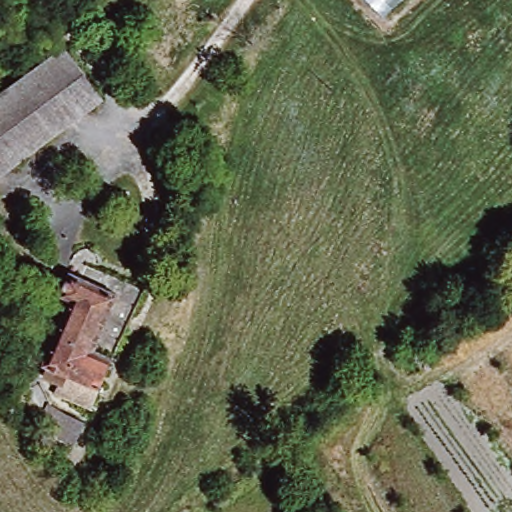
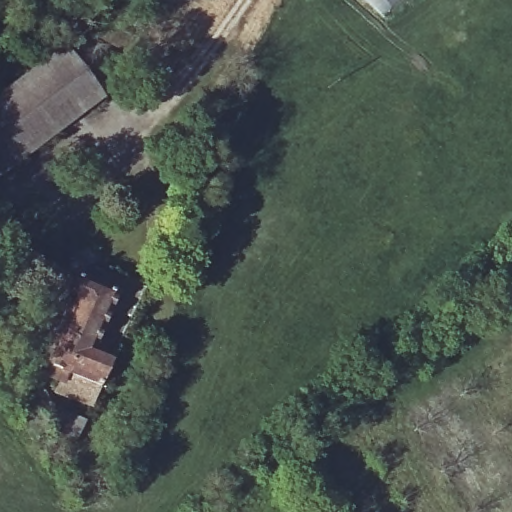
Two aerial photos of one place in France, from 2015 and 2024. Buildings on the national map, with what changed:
unchanged [(70,48),(110,97),(0,187),(0,104),(70,48)]
unchanged [(60,372),(52,368),(77,305),(67,301),(74,285),(84,290),(94,265),(155,291),(105,406),(73,393),(55,385),(60,372)]
unchanged [(32,409),(42,392),(69,428),(94,441),(85,460),(65,454),(39,410),(32,409)]

